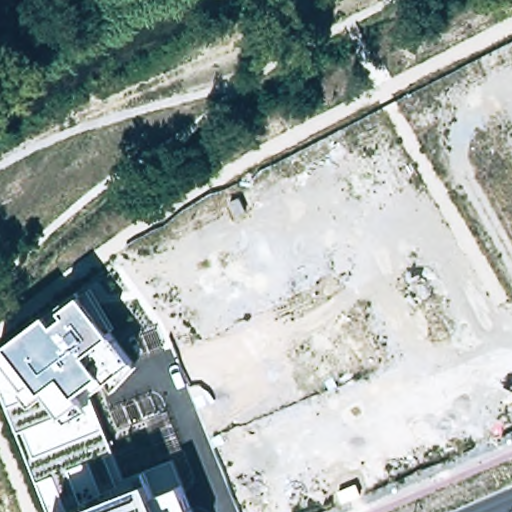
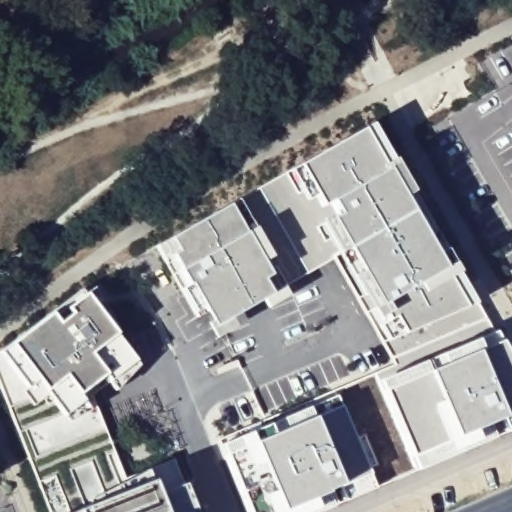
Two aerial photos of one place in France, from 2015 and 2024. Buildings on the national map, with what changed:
new [(230,202),(295,164),(320,205),(382,305),(401,335),(465,310),(360,129),(369,124),(482,317),(392,357),(332,257),(280,287),(230,202)]
new [(401,335),(382,305),(320,205),(295,164),(360,129),(383,169),(441,270),(465,310),(401,335)]
demolished [(219,158),(250,145),(262,165),(235,179),(219,158)]
new [(162,241),(230,202),(280,287),(213,326),(162,241)]
unchanged [(109,380),(92,395),(125,479),(171,461),(183,485),(194,512),(49,512),(37,483),(0,388),(0,353),(10,345),(48,314),(57,325),(70,315),(65,308),(85,295),(114,333),(134,360),(138,365),(115,390),(109,380)]
new [(367,475),(339,407),(335,396),(332,391),(395,365),(392,357),(482,317),(492,332),(475,340),(437,357),(376,381),(381,391),(409,457),(415,470),(373,489),(367,475)]
new [(415,470),(409,457),(381,391),(376,381),(437,357),(475,340),(492,332),(498,342),(512,366),(512,430),(508,431),(488,442),(415,470)]
new [(316,512),(246,512),(223,455),(218,445),(235,438),(246,434),(265,426),(305,410),(335,396),(339,407),(367,475),(373,489),(345,501),(329,506),(316,512)]

